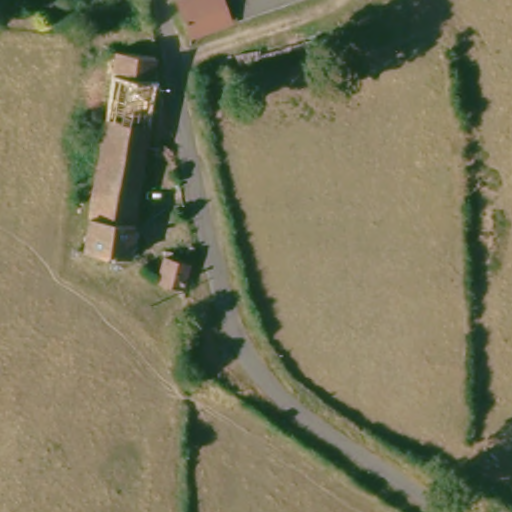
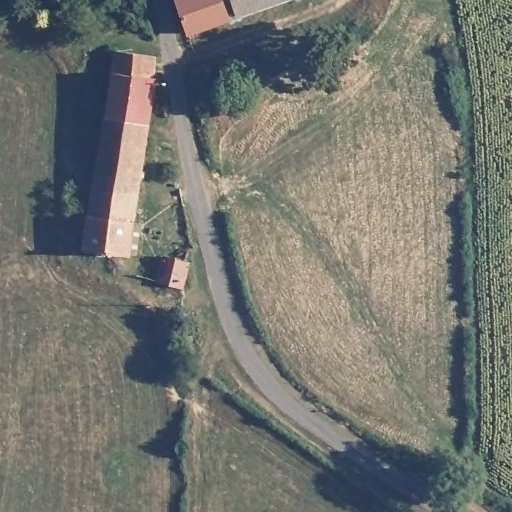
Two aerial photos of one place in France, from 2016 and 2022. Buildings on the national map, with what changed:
unchanged [(196,33),(191,20),(185,0),(230,0),(231,2),(236,20),(196,33)]
unchanged [(235,0),(302,0),(241,18),(235,0)]
unchanged [(141,224),(137,256),(130,255),(129,257),(83,252),(110,74),(113,54),(156,59),(157,68),(155,80),(134,223),(141,224)]
unchanged [(188,288),(163,283),(163,257),(187,263),(188,288)]

